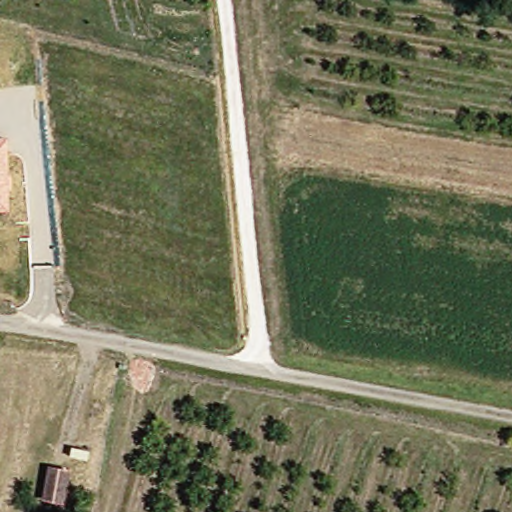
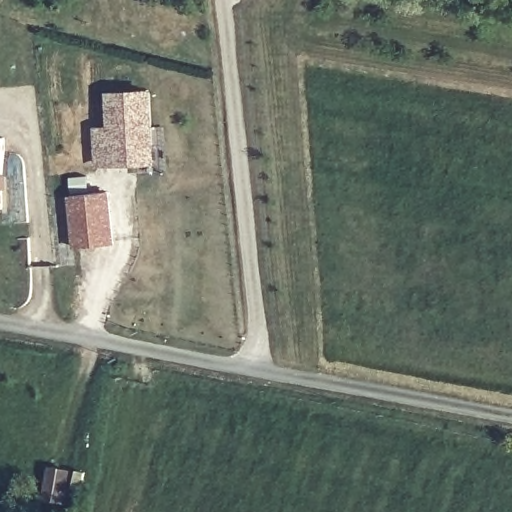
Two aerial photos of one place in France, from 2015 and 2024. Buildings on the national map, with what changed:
new [(147,94),(149,164),(109,164),(107,95),(147,94)]
unchanged [(5,137),(6,175),(9,175),(11,189),(6,189),(7,211),(0,211),(0,137),(5,137)]
new [(119,245),(75,250),(69,196),(112,192),(119,245)]
unchanged [(67,512),(48,508),(54,477),(72,479),(67,512)]

